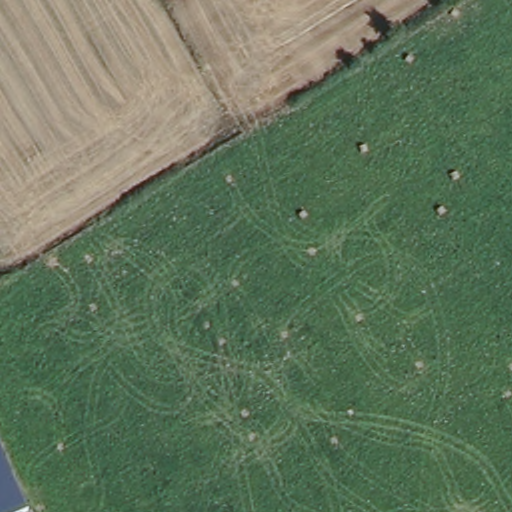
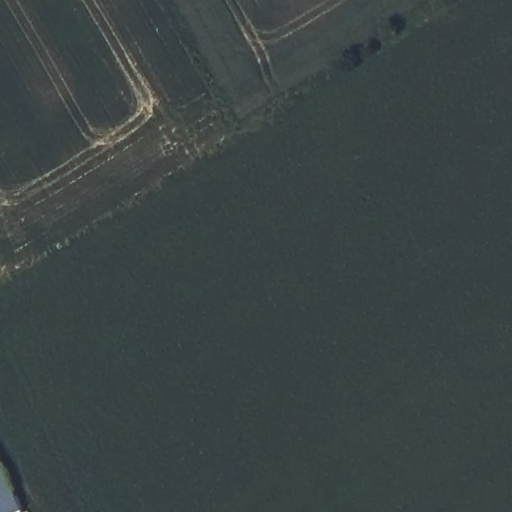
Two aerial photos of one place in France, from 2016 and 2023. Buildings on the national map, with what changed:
unchanged [(27,512),(0,512),(0,454),(27,512)]

